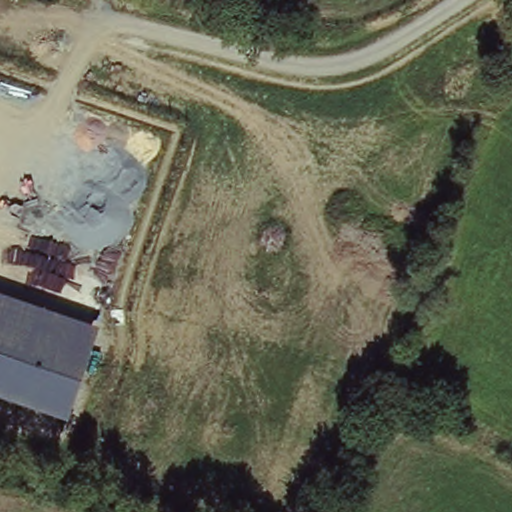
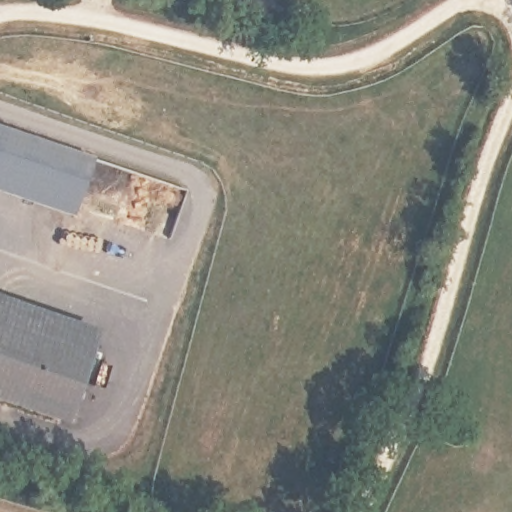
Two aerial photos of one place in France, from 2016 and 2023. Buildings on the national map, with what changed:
new [(88,164),(67,222),(0,200),(0,136),(88,164)]
unchanged [(66,423),(0,400),(0,297),(97,330),(66,423)]

